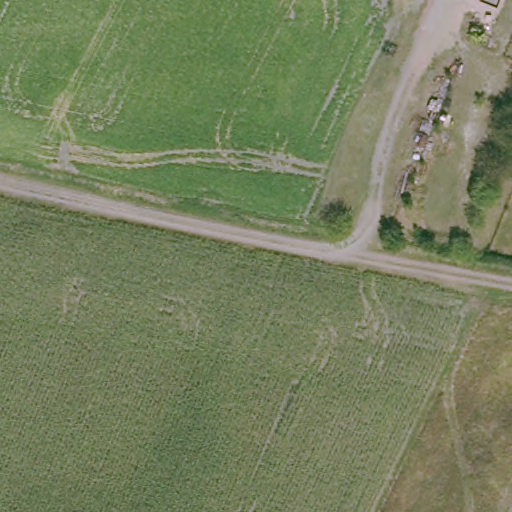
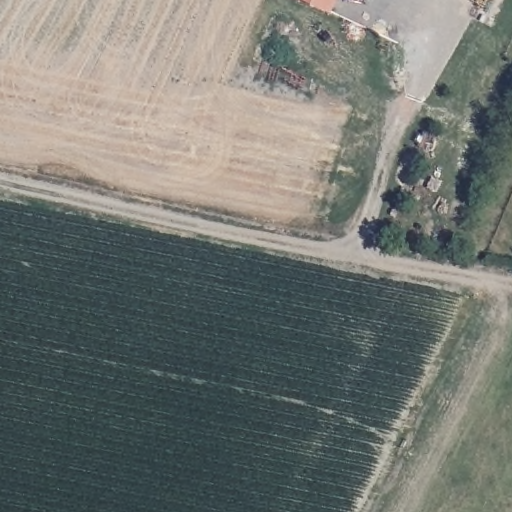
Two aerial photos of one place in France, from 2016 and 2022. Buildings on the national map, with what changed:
new [(307,0),(339,0),(334,12),(307,0)]

